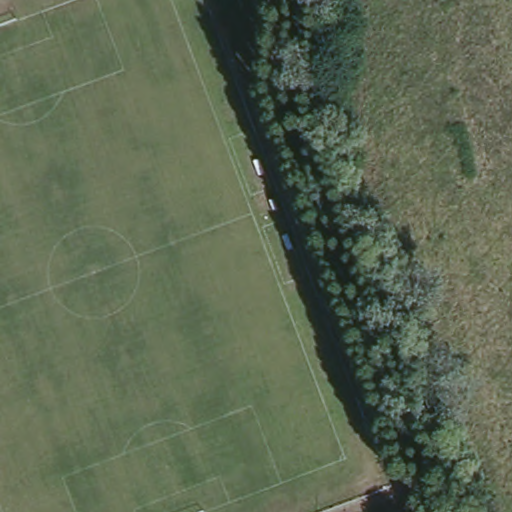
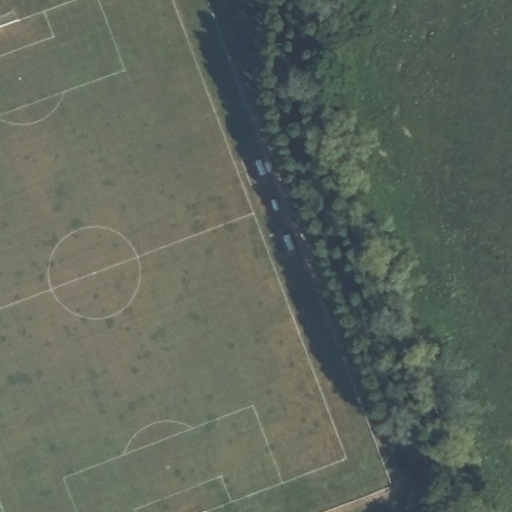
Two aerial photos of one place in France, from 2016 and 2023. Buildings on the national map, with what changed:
[]

